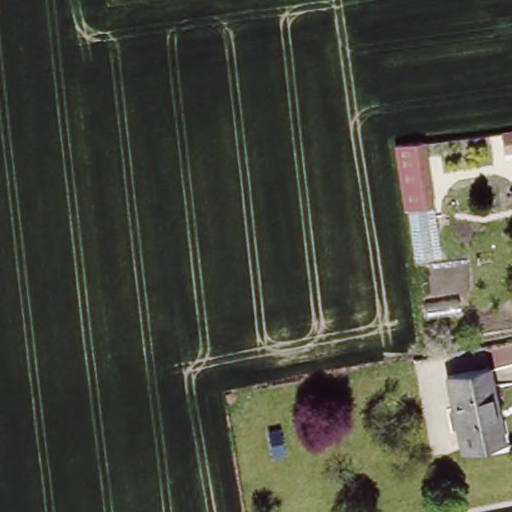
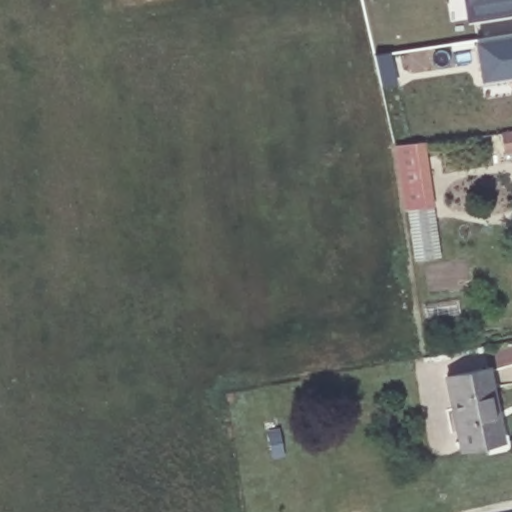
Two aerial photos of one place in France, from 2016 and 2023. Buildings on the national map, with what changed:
new [(468,21),(464,0),(512,0),(512,15),(468,21)]
new [(486,98),(477,39),(512,33),(512,94),(486,98)]
unchanged [(394,143),(425,138),(442,256),(412,262),(394,143)]
unchanged [(498,411),(492,412),(499,442),(462,450),(446,377),(488,368),(498,411)]

